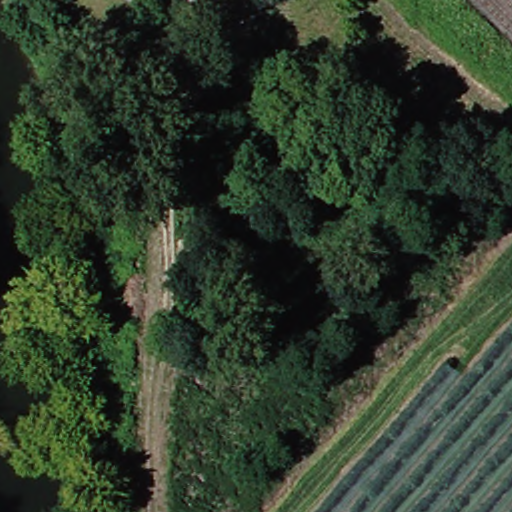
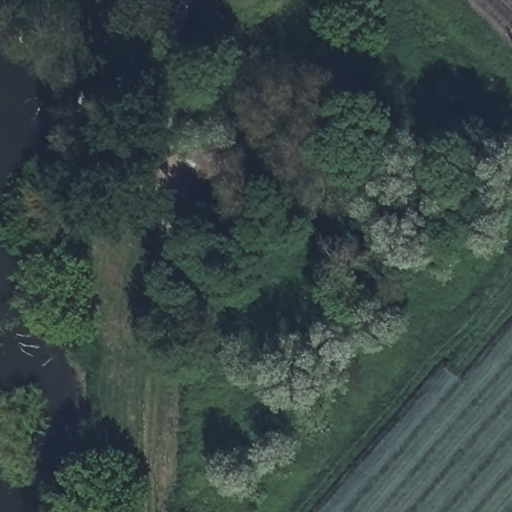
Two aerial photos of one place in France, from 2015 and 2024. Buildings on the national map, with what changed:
[]

